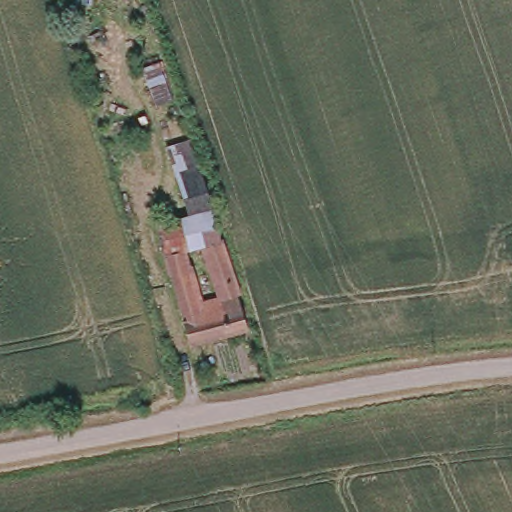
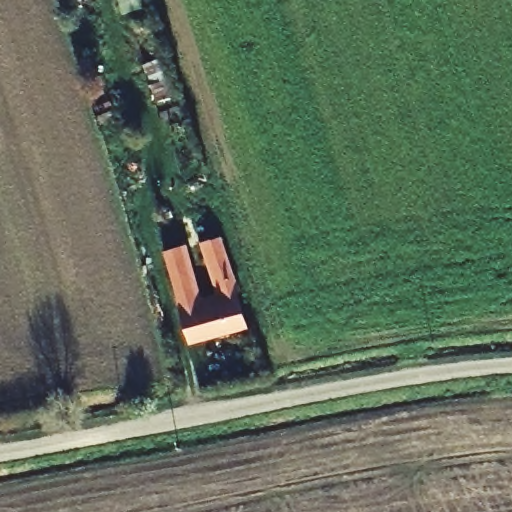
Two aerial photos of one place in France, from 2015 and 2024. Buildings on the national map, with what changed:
unchanged [(170,72),(153,78),(147,58),(162,53),(170,72)]
unchanged [(211,205),(249,321),(187,337),(169,267),(164,249),(155,221),(211,205)]

